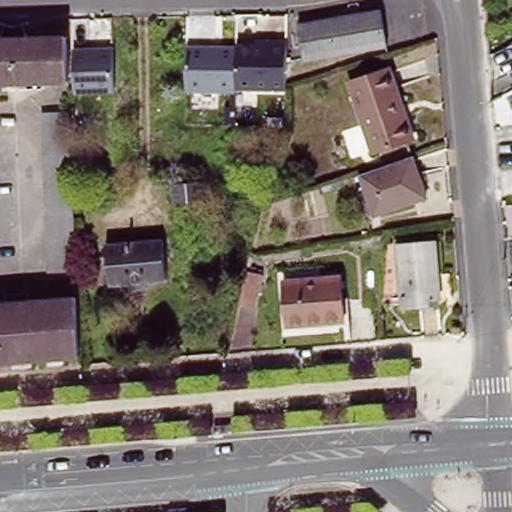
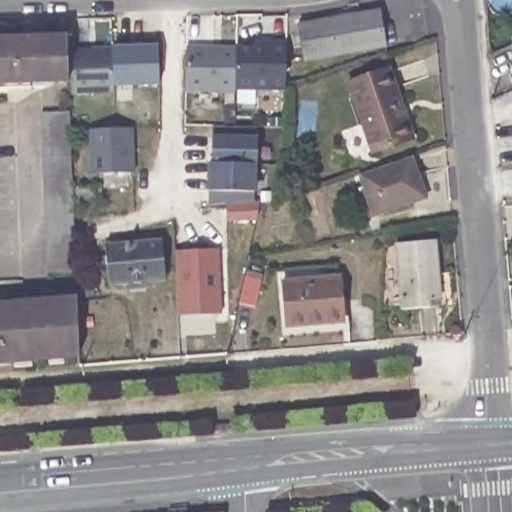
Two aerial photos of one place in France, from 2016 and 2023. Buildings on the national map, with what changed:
unchanged [(380,8),(387,42),(360,48),(308,59),(301,25),(355,14),(380,8)]
unchanged [(2,44),(6,30),(17,32),(23,30),(27,42),(68,41),(70,86),(0,88),(0,44),(2,44)]
unchanged [(255,40),(286,40),(285,90),(185,91),(185,46),(253,47),(255,40)]
new [(115,85),(113,47),(113,45),(157,44),(160,86),(115,85)]
unchanged [(116,94),(75,96),(72,49),(113,47),(116,94)]
unchanged [(392,74),(395,84),(411,145),(370,156),(352,85),(392,74)]
unchanged [(70,112),(75,273),(47,275),(42,114),(70,112)]
new [(90,176),(88,130),(133,128),(135,174),(90,176)]
new [(225,222),(225,204),(207,205),(207,192),(205,163),(210,162),(211,135),(257,136),(256,165),(256,192),(255,202),(260,202),(256,221),(225,222)]
demolished [(205,157),(205,179),(189,180),(188,159),(205,157)]
unchanged [(412,159),(426,200),(372,217),(360,176),(412,159)]
unchanged [(165,241),(168,282),(110,287),(107,245),(165,241)]
unchanged [(432,302),(431,310),(401,312),(397,263),(396,245),(431,244),(434,244),(435,261),(437,301),(432,302)]
new [(177,318),(175,250),(218,250),(221,315),(177,318)]
unchanged [(342,325),(284,331),(280,286),(308,283),(338,280),(338,285),(342,325)]
unchanged [(75,298),(77,357),(0,363),(0,304),(75,298)]

